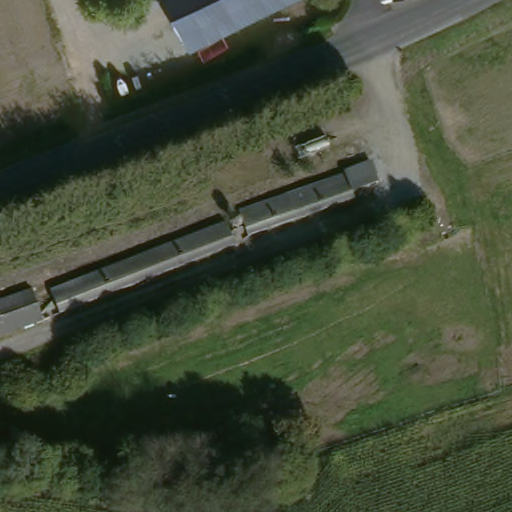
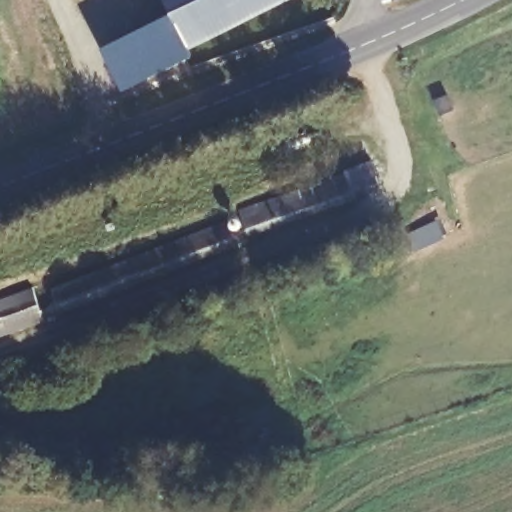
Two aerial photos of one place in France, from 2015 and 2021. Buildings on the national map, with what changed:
unchanged [(162,0),(296,0),(251,19),(188,49),(162,0)]
demolished [(324,26),(314,0),(326,0),(335,21),(324,26)]
new [(188,49),(192,58),(124,91),(103,49),(171,16),(188,49)]
unchanged [(345,181),(343,176),(372,166),(379,188),(350,198),(348,192),(242,225),(238,213),(345,181)]
unchanged [(240,239),(64,307),(58,290),(232,222),(240,239)]
unchanged [(0,333),(0,301),(38,287),(48,314),(0,333)]

